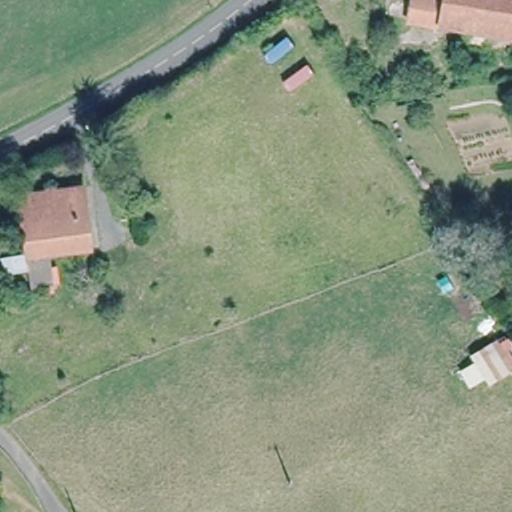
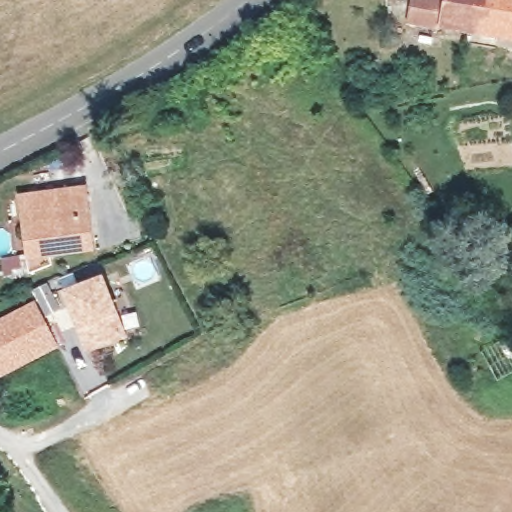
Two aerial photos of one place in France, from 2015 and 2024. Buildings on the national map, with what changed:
unchanged [(438,22),(424,20),(409,17),(412,0),(468,0),(465,27),(438,22)]
unchanged [(468,0),(512,0),(512,34),(465,27),(468,0)]
unchanged [(20,197),(80,190),(87,251),(49,255),(27,257),(20,197)]
new [(116,310),(127,337),(86,352),(77,328),(60,289),(102,272),(116,310)]
new [(60,347),(0,378),(0,319),(34,302),(60,347)]

